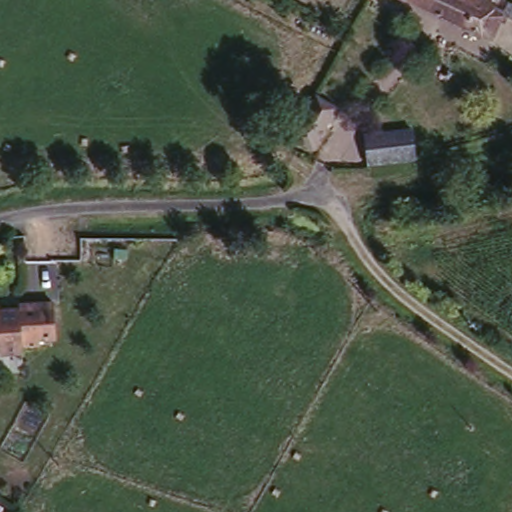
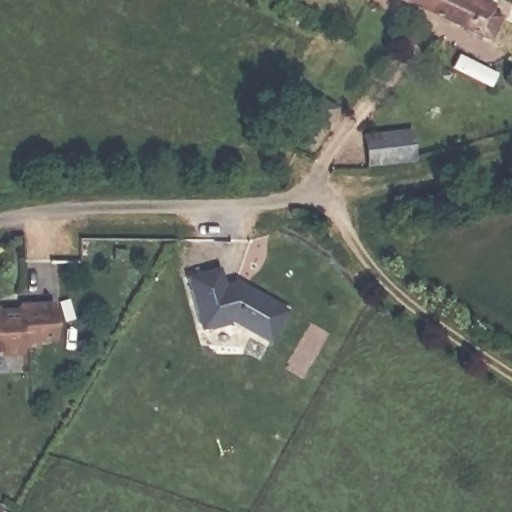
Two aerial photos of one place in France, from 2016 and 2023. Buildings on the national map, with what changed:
unchanged [(411,0),(494,0),(477,33),(411,0)]
unchanged [(289,134),(304,105),(312,91),(334,104),(326,118),(310,146),(289,134)]
unchanged [(365,144),(410,131),(417,153),(371,166),(365,144)]
new [(216,265),(222,285),(234,281),(235,278),(287,305),(271,337),(231,317),(202,326),(186,275),(216,265)]
unchanged [(17,310),(16,304),(51,300),(56,335),(39,337),(40,341),(23,343),(24,352),(1,354),(1,352),(0,352),(0,307),(17,310)]
new [(2,507),(0,510),(0,507),(2,507)]

